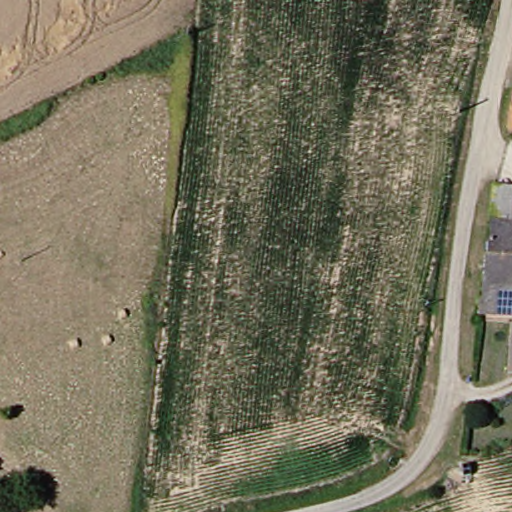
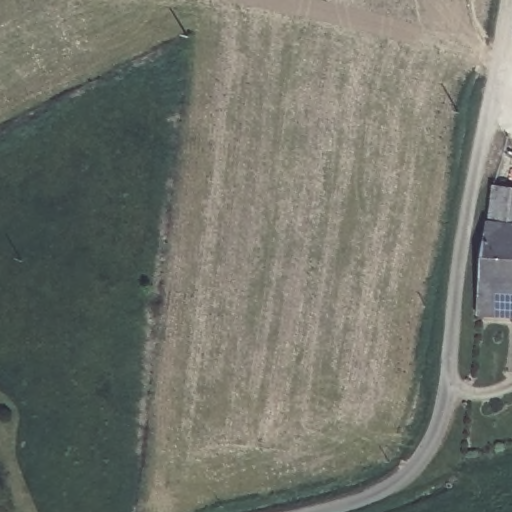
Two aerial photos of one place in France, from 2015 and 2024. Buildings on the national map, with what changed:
unchanged [(481,313),(492,188),(512,190),(512,315),(481,313)]

